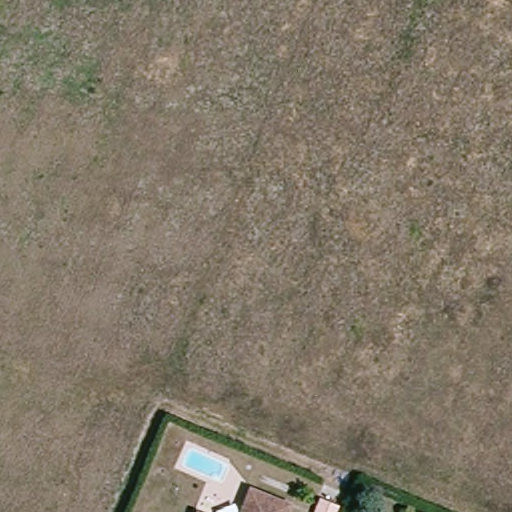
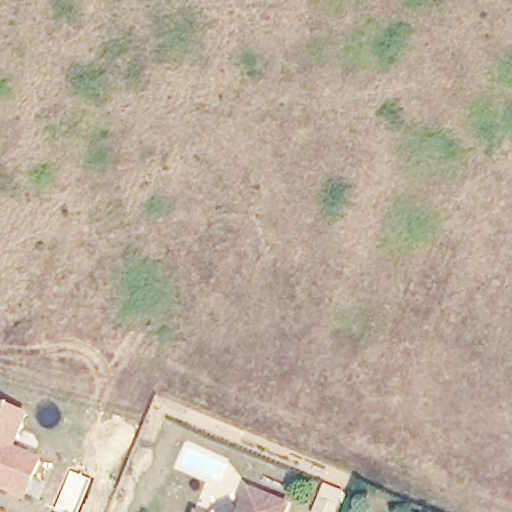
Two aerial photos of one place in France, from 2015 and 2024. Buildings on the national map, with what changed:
new [(15,447),(43,458),(26,501),(0,490),(0,402),(29,415),(15,447)]
unchanged [(245,512),(254,490),(292,505),(289,512),(245,512)]

